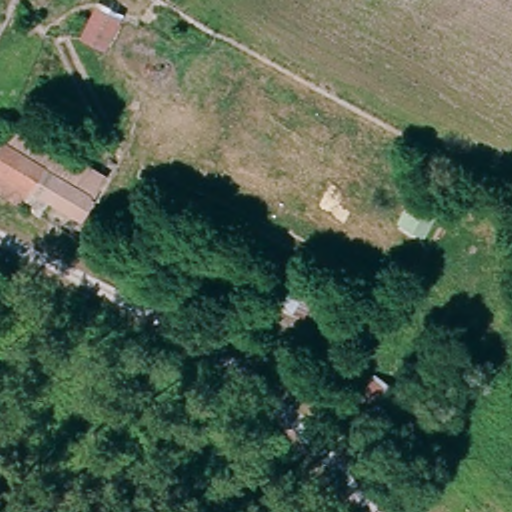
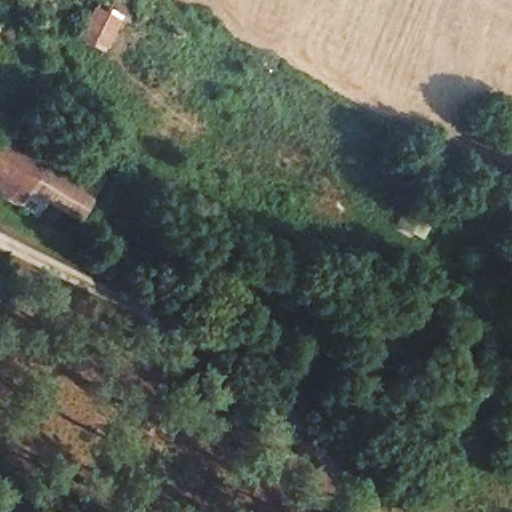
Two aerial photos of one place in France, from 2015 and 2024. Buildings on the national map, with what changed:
unchanged [(87,4),(115,17),(97,54),(69,40),(87,4)]
unchanged [(58,183),(41,210),(0,185),(0,126),(5,117),(102,177),(86,204),(58,183)]
unchanged [(405,188),(435,203),(418,239),(383,223),(405,188)]
unchanged [(396,391),(364,435),(330,411),(360,368),(396,391)]

